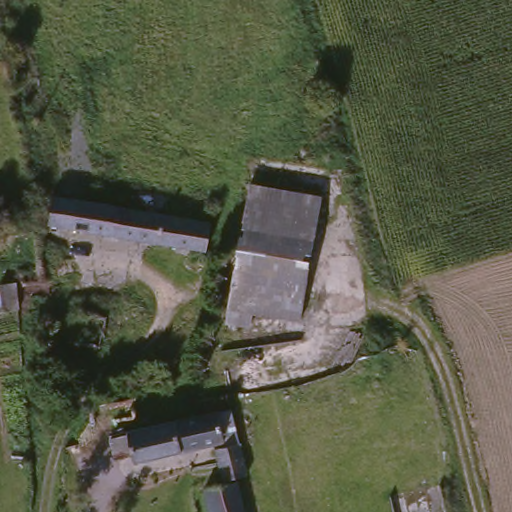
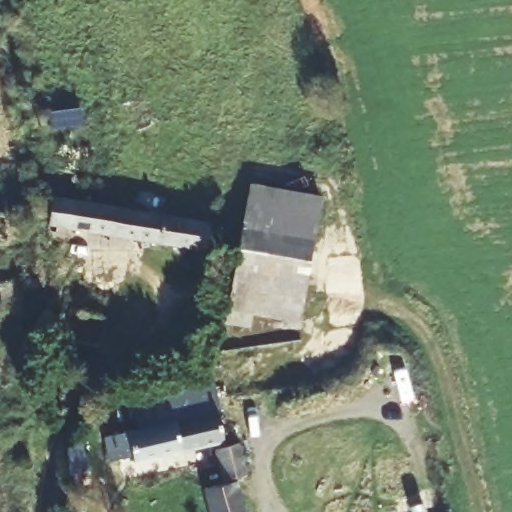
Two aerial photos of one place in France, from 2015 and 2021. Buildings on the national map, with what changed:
unchanged [(217,260),(48,232),(52,182),(91,189),(90,208),(222,226),(217,260)]
unchanged [(297,333),(249,322),(247,335),(220,333),(247,194),(320,203),(297,333)]
unchanged [(7,329),(4,304),(17,300),(20,304),(22,327),(7,329)]
unchanged [(103,352),(45,344),(48,308),(108,318),(103,352)]
unchanged [(220,447),(133,469),(127,460),(111,463),(107,444),(125,442),(123,436),(210,414),(220,447)]
unchanged [(250,512),(209,512),(204,487),(242,478),(250,512)]

